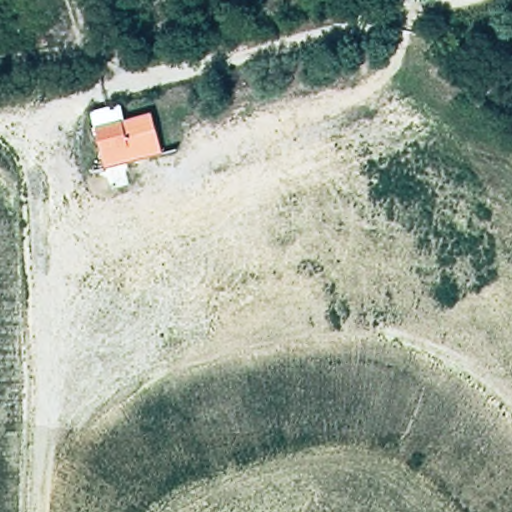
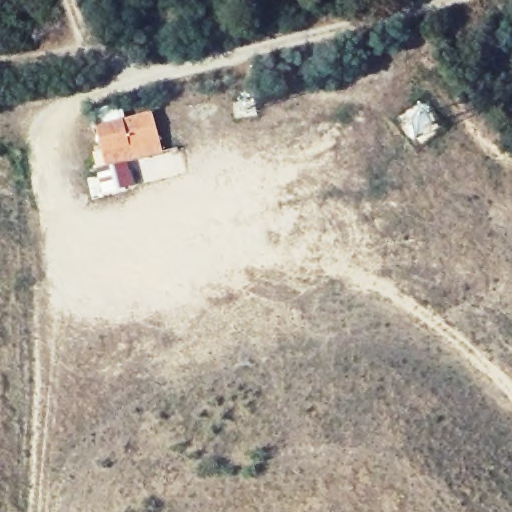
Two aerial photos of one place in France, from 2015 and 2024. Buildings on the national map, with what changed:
unchanged [(92,110),(124,100),(132,131),(152,125),(160,147),(105,161),(92,110)]

